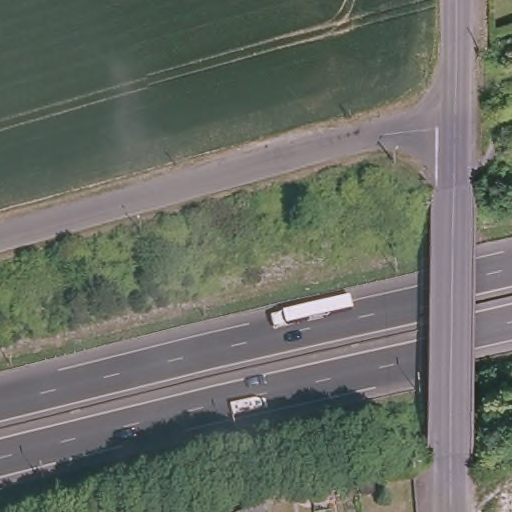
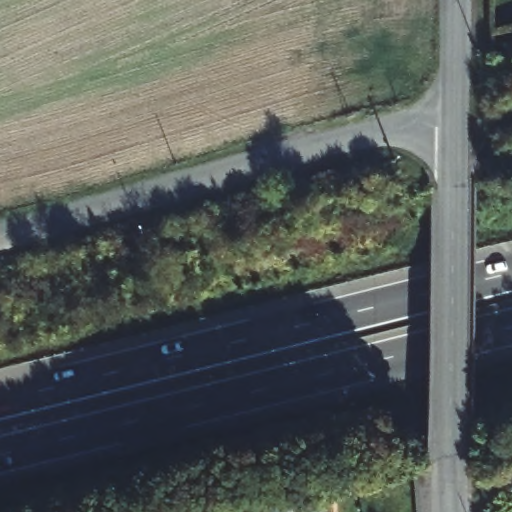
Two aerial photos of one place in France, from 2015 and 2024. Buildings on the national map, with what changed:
unchanged [(315,504),(313,488),(329,486),(331,506),(315,508),(315,504)]
unchanged [(269,512),(240,512),(267,499),(269,512)]

